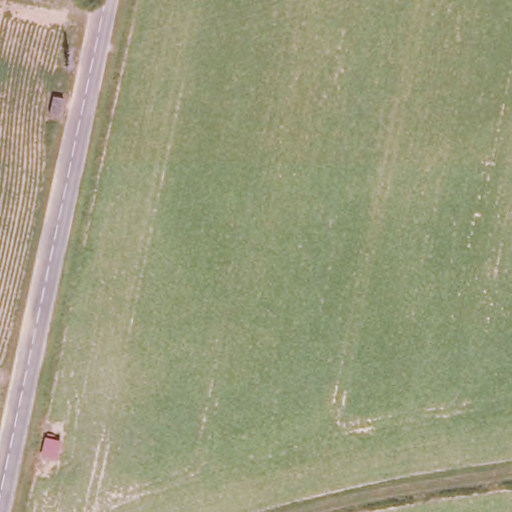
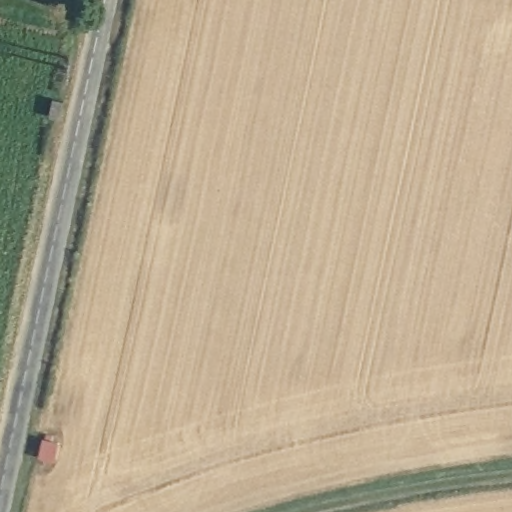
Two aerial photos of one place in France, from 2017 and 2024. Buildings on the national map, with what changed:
unchanged [(67,103),(64,119),(58,118),(52,116),(55,99),(61,101),(67,103)]
unchanged [(45,441),(53,443),(52,449),(58,450),(55,467),(41,464),(45,441)]

